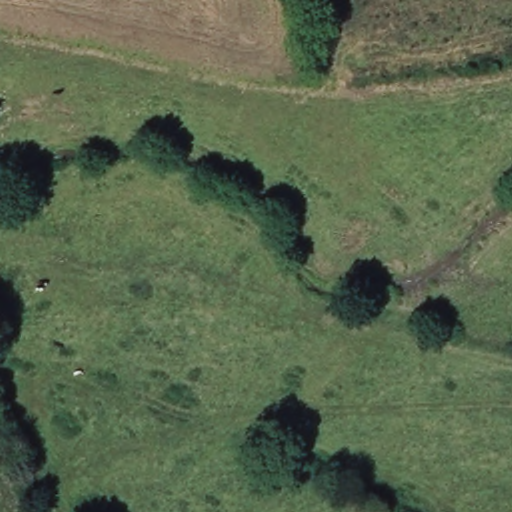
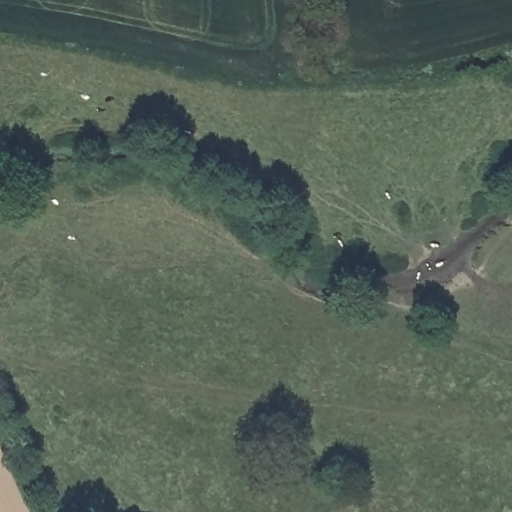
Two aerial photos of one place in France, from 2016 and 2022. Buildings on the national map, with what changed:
[]

